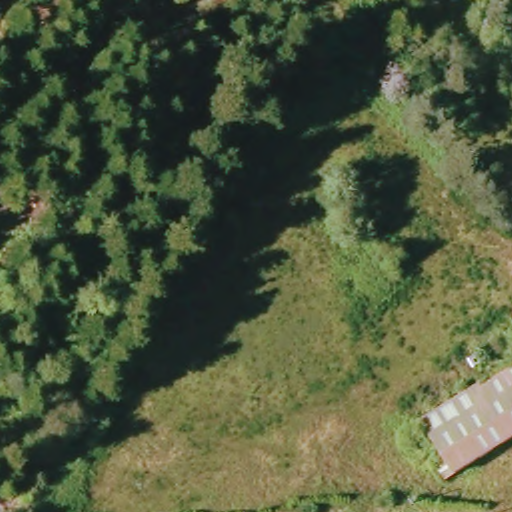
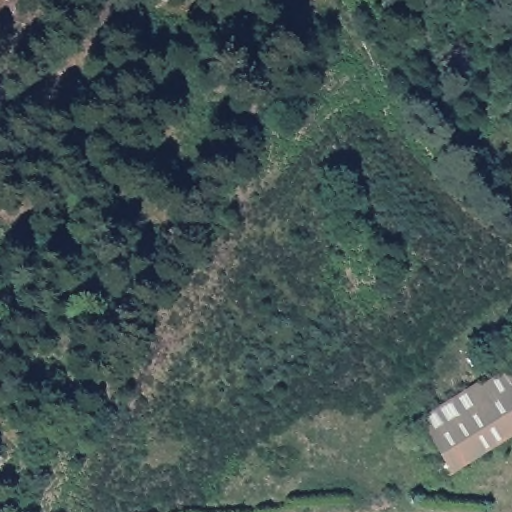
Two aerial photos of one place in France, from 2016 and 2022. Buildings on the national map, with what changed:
unchanged [(450,479),(442,464),(454,455),(442,434),(500,397),(489,383),(512,369),(512,440),(450,479)]

